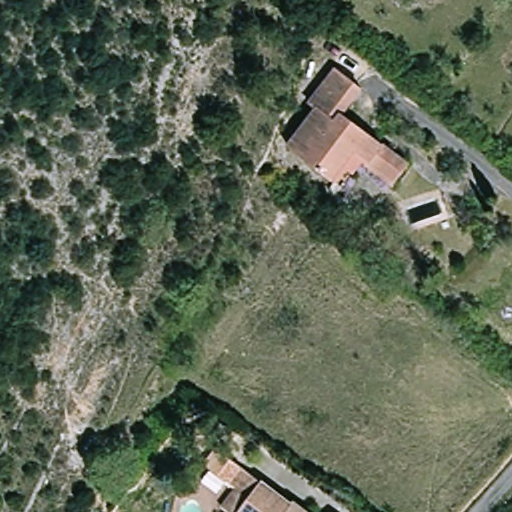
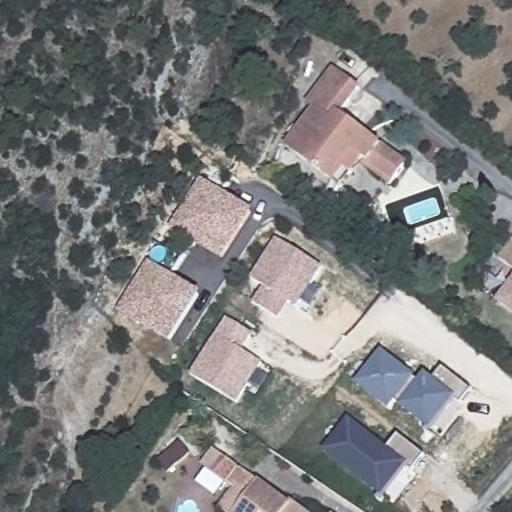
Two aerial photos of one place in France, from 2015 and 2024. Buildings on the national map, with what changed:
unchanged [(364,162),(345,189),(335,181),(291,146),(319,109),(312,104),(337,69),(364,89),(344,115),(411,165),(399,182),(396,187),(364,162)]
new [(256,211),(223,262),(168,228),(199,177),(256,211)]
new [(324,267),(298,308),(289,302),(279,319),(251,301),(261,286),(249,278),(275,237),(324,267)]
new [(501,259),(512,245),(512,268),(501,259)]
new [(203,294),(171,345),(116,312),(148,260),(203,294)]
new [(499,301),(512,283),(512,312),(499,301)]
new [(252,333),(240,349),(263,364),(236,405),(189,375),(225,316),(252,333)]
new [(420,381),(425,375),(432,380),(443,367),(472,390),(461,405),(457,402),(430,437),(424,432),(428,426),(395,400),(389,407),(357,382),(381,351),(420,381)]
new [(386,448),(398,434),(425,456),(413,471),(410,468),(382,502),(376,498),(380,494),(324,449),(348,419),(386,448)]
unchanged [(238,494),(218,480),(231,464),(294,510),(296,508),(302,512),(224,512),(238,494)]

